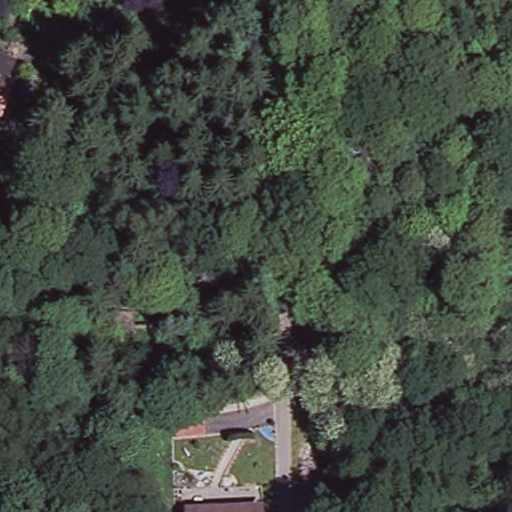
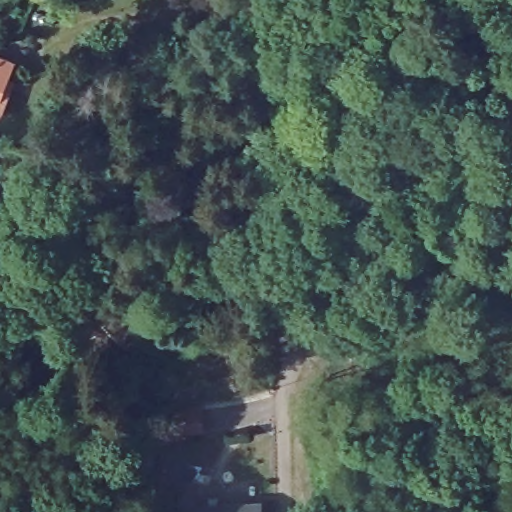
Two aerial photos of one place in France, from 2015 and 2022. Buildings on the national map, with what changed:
unchanged [(0,88),(0,56),(10,60),(0,88)]
unchanged [(135,317),(132,349),(98,346),(101,314),(135,317)]
unchanged [(240,504),(258,504),(258,512),(185,512),(185,505),(240,504)]

